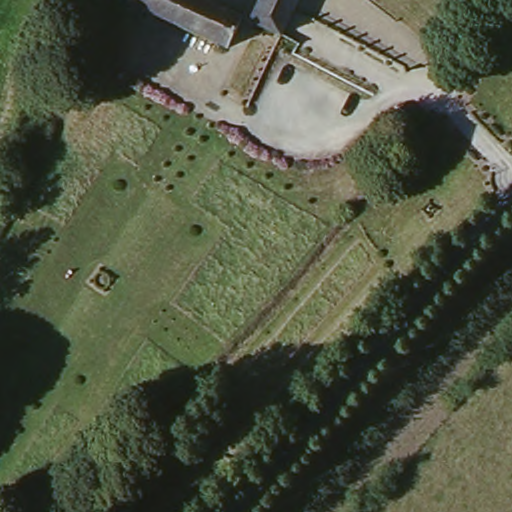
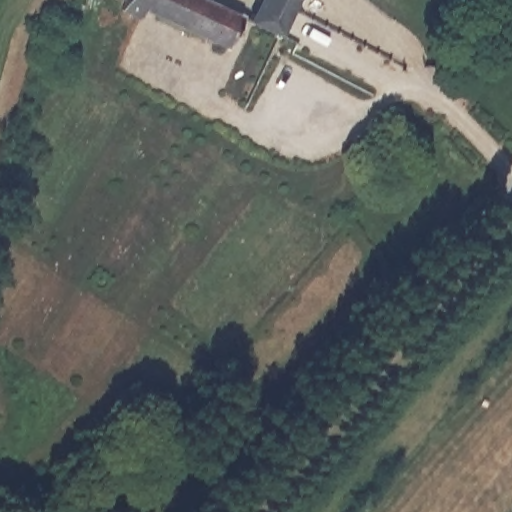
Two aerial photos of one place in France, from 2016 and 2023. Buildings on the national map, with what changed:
unchanged [(241,11),(227,42),(144,2),(139,12),(120,4),(122,0),(218,0),(241,11)]
unchanged [(288,10),(279,29),(249,14),(256,0),(294,0),(288,10)]

